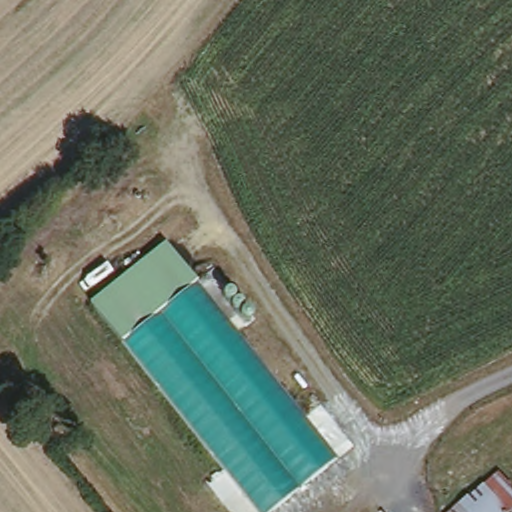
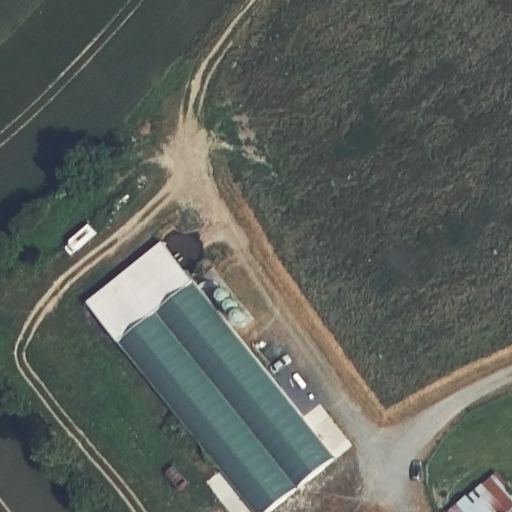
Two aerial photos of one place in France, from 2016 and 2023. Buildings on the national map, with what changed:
unchanged [(167,239),(341,452),(267,512),(261,512),(90,302),(167,239)]
unchanged [(512,487),(512,512),(440,512),(493,467),(512,487)]

